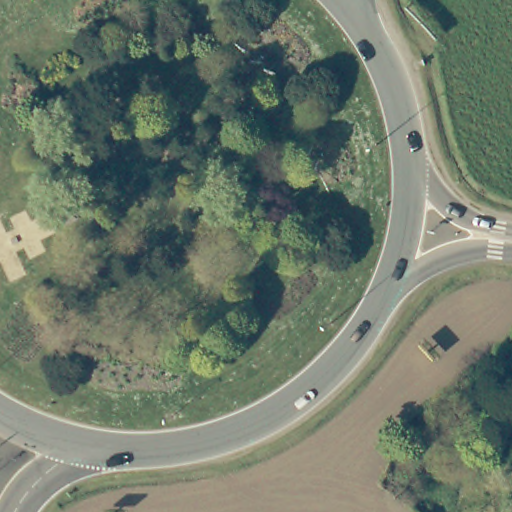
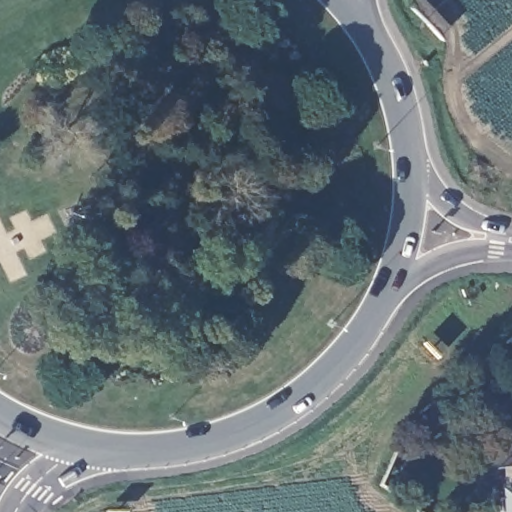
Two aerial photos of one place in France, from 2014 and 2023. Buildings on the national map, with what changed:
new [(502,488),(497,468),(512,467),(512,512),(503,512),(502,488)]

